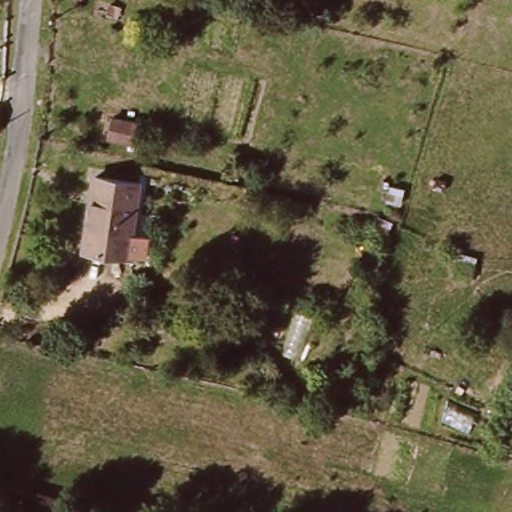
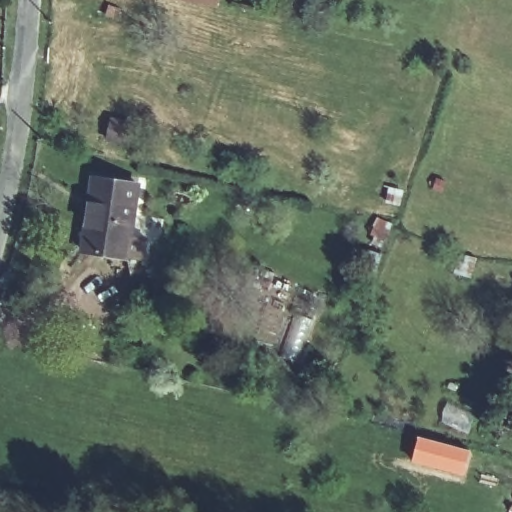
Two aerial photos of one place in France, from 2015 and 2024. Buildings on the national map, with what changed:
new [(180,0),(222,0),(220,8),(180,0)]
unchanged [(144,125),(139,144),(115,139),(119,119),(144,125)]
unchanged [(0,133),(0,130),(1,132),(0,133)]
unchanged [(87,180),(145,187),(132,236),(150,240),(147,261),(80,255),(87,180)]
new [(472,451),(465,476),(415,462),(420,438),(472,451)]

